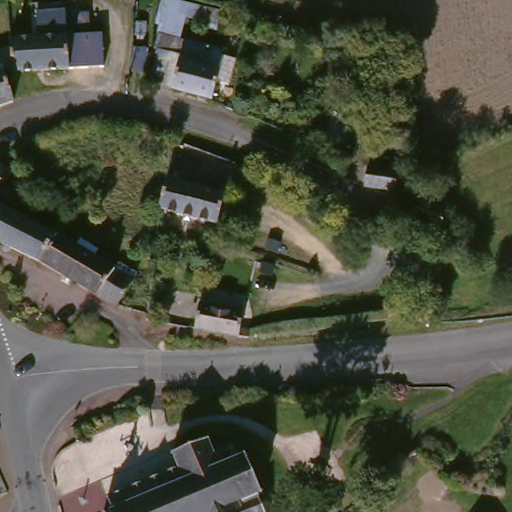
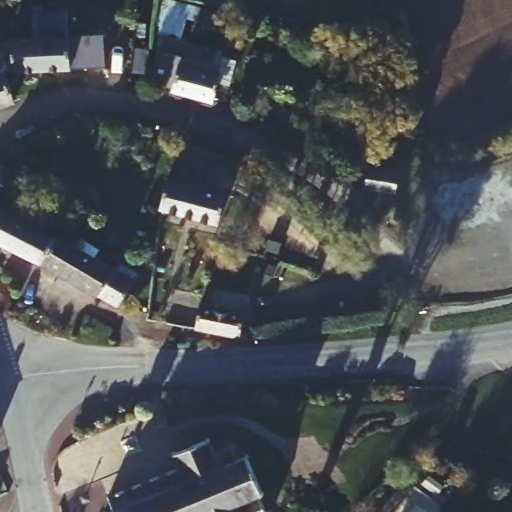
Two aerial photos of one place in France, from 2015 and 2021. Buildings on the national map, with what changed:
unchanged [(228,101),(139,91),(150,0),(176,0),(214,9),(211,27),(184,23),(183,43),(233,55),(228,101)]
unchanged [(67,36),(101,37),(104,71),(14,73),(11,33),(33,34),(33,12),(64,12),(67,36)]
unchanged [(0,77),(0,51),(8,48),(13,75),(0,77)]
unchanged [(0,90),(3,104),(0,105),(0,90)]
unchanged [(393,194),(360,192),(362,165),(394,171),(393,194)]
unchanged [(221,192),(215,228),(155,216),(161,179),(221,192)]
unchanged [(59,242),(133,285),(115,313),(0,249),(0,184),(66,227),(59,242)]
unchanged [(203,303),(239,312),(237,324),(246,327),(244,332),(243,341),(191,331),(196,302),(203,303)]
unchanged [(223,452),(227,467),(251,461),(262,500),(259,501),(262,512),(99,512),(99,510),(109,506),(106,495),(179,469),(176,454),(209,443),(212,454),(223,452)]

